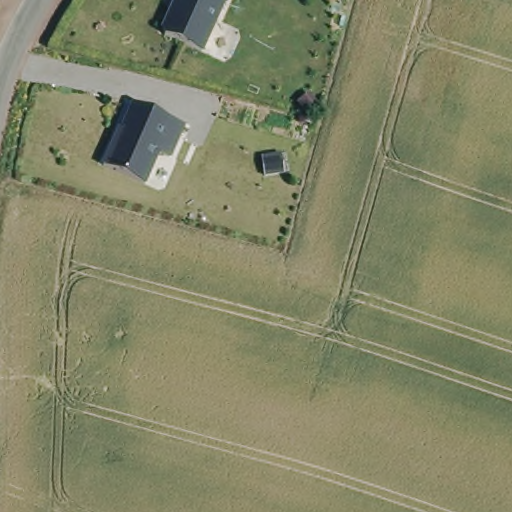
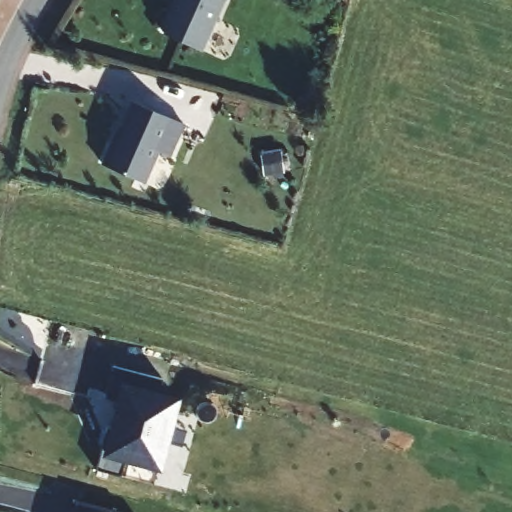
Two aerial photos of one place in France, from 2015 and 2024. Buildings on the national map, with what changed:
unchanged [(220,0),(199,48),(162,31),(160,25),(168,6),(171,0),(220,0)]
unchanged [(182,121),(168,154),(157,149),(143,180),(102,163),(112,139),(115,140),(132,99),(182,121)]
new [(106,397),(114,368),(162,380),(159,391),(182,397),(162,473),(123,462),(120,476),(98,469),(117,400),(106,397)]
new [(114,512),(75,512),(78,503),(114,512)]

